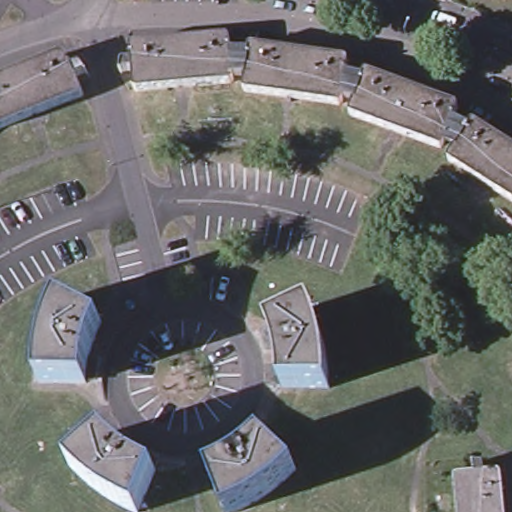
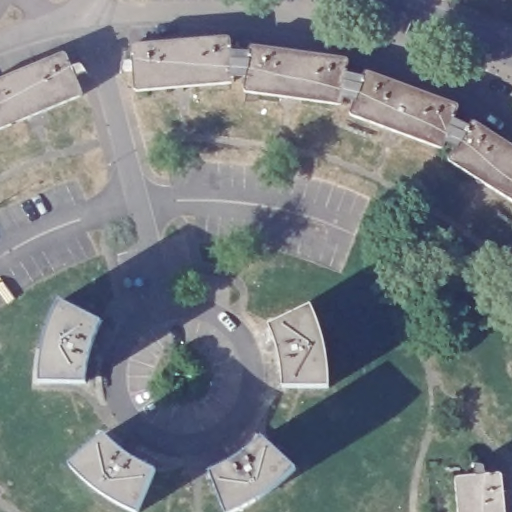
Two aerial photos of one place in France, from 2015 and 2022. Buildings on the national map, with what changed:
unchanged [(454,144),(443,139),(441,146),(347,113),(352,98),(342,96),(340,105),(242,90),(244,76),(233,77),(234,83),(134,92),(132,72),(122,73),(122,61),(124,59),(131,59),(129,44),(230,36),(232,51),(247,51),(248,43),(347,59),(345,72),(360,76),(362,68),(456,101),(451,117),(466,124),(469,118),(512,145),(512,200),(445,159),(454,144)]
unchanged [(62,52),(69,68),(80,64),(83,73),(73,77),(81,96),(0,126),(0,76),(62,52)]
unchanged [(102,317),(98,327),(93,339),(90,350),(88,361),(86,372),(86,380),(38,377),(38,364),(41,345),(44,334),(47,323),(50,314),(53,304),(58,296),(102,317)]
unchanged [(310,303),(315,314),(317,322),(321,332),(323,338),(325,346),(326,354),(327,362),(328,372),(328,385),(280,387),(279,373),(278,366),(276,357),(275,349),(273,343),(271,338),(266,325),(310,303)]
unchanged [(103,430),(108,434),(114,440),(119,446),(125,451),(130,456),(136,459),(141,462),(145,465),(151,468),(154,470),(133,511),(125,508),(116,503),(107,498),(99,493),(94,489),(87,483),(81,478),(66,461),(103,430)]
unchanged [(287,477),(282,482),(277,486),(270,492),(263,496),(253,500),(243,504),(227,512),(226,512),(208,465),(218,461),(225,459),(229,457),(237,452),(245,447),(252,442),(264,434),(297,470),(287,477)]
unchanged [(476,470),(475,460),(487,458),(488,469),(504,468),(507,512),(461,512),(458,472),(476,470)]

